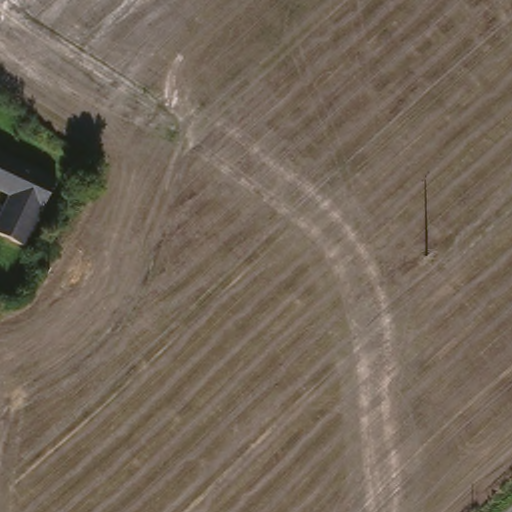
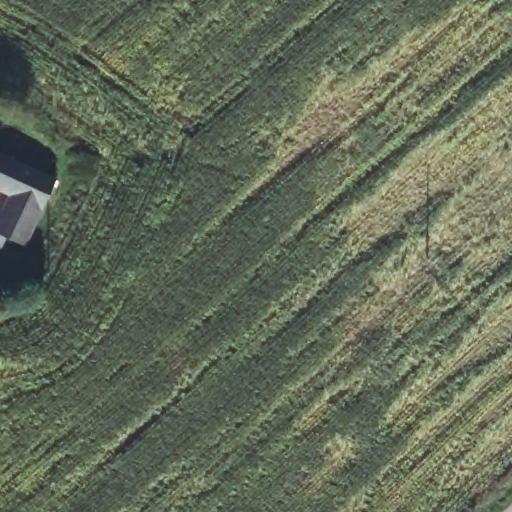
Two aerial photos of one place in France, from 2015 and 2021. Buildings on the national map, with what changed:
unchanged [(0,232),(0,217),(10,196),(0,192),(0,153),(42,172),(57,170),(23,244),(21,241),(0,232)]

